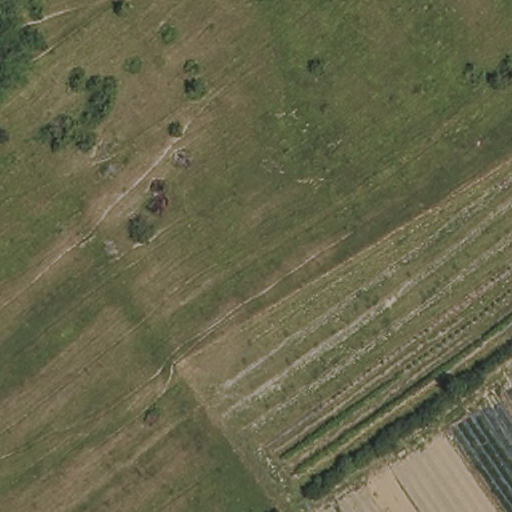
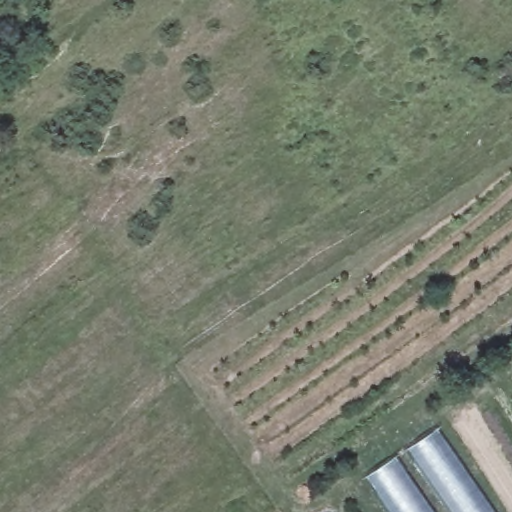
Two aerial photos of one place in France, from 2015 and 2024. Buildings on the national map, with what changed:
new [(408,451),(438,432),(493,512),(451,512),(408,451)]
new [(366,479),(397,458),(434,512),(389,512),(366,479)]

